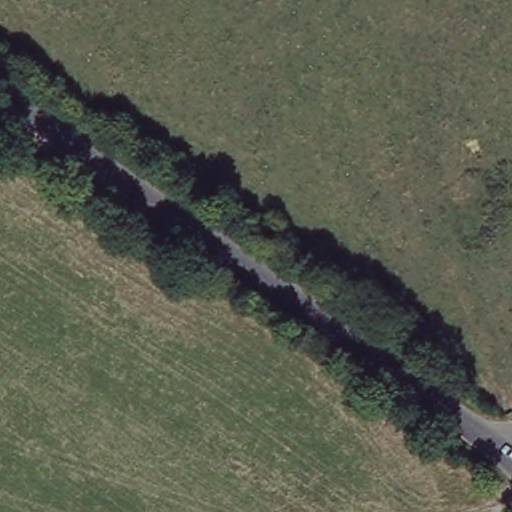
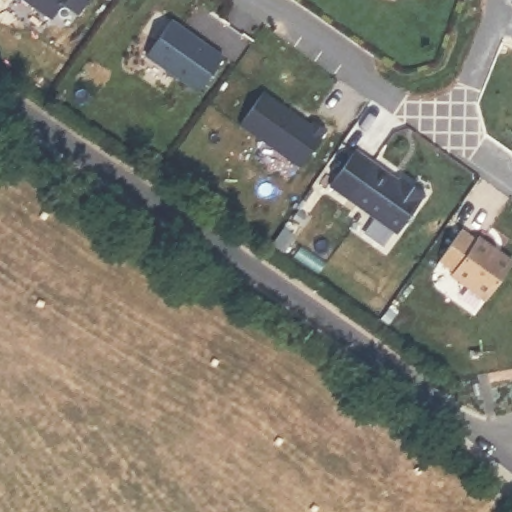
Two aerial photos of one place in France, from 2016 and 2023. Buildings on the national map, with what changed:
new [(32,0),(61,0),(52,14),(32,0)]
new [(66,0),(84,0),(79,9),(66,0)]
new [(173,16),(225,53),(200,89),(148,51),(173,16)]
new [(266,87),(313,121),(316,117),(328,127),(302,164),(242,121),(266,87)]
new [(358,149),(407,185),(410,182),(426,192),(397,232),(332,182),(358,149)]
new [(464,225),(478,236),(481,232),(512,254),(512,263),(489,295),(454,270),(457,266),(442,255),(464,225)]

